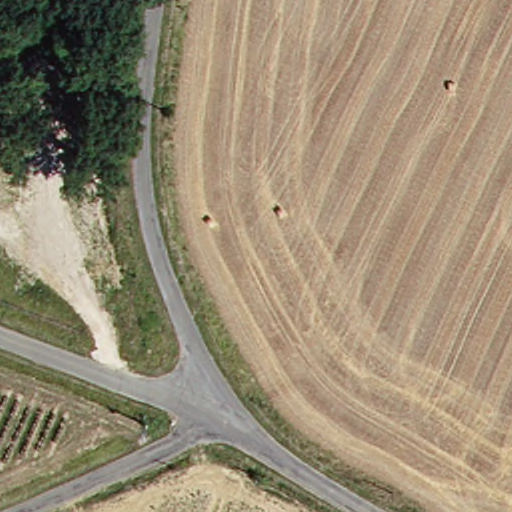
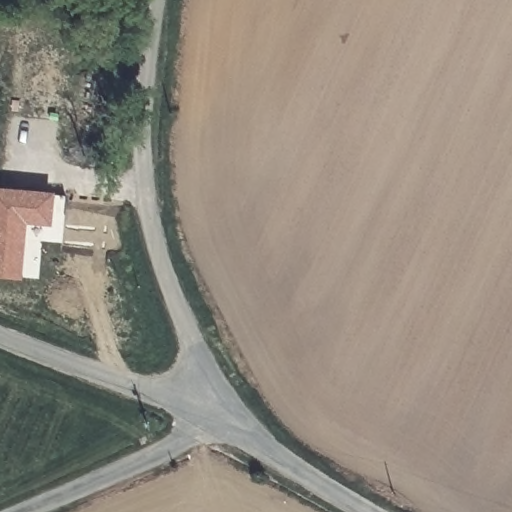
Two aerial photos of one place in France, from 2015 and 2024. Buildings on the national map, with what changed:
new [(51,227),(26,226),(21,280),(0,278),(0,189),(54,194),(51,227)]
unchanged [(149,413),(145,425),(132,420),(135,408),(149,413)]

